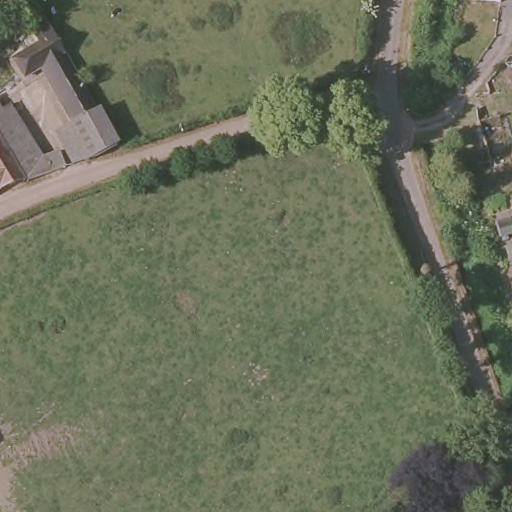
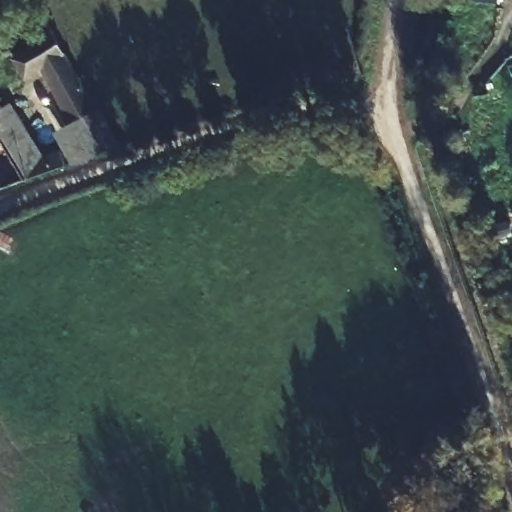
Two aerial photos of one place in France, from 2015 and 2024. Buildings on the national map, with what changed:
unchanged [(492,41),(470,40),(473,0),(497,0),(497,8),(492,41)]
unchanged [(66,151),(55,132),(71,124),(42,69),(24,79),(12,57),(37,42),(32,33),(22,12),(38,4),(50,24),(68,55),(96,110),(102,107),(120,143),(94,157),(73,165),(66,151)]
unchanged [(12,30),(0,36),(0,28),(7,24),(12,30)]
unchanged [(19,140),(11,144),(0,123),(0,95),(8,110),(16,106),(45,160),(66,151),(73,165),(39,177),(19,140)]
unchanged [(3,189),(0,190),(0,128),(29,181),(3,189)]

